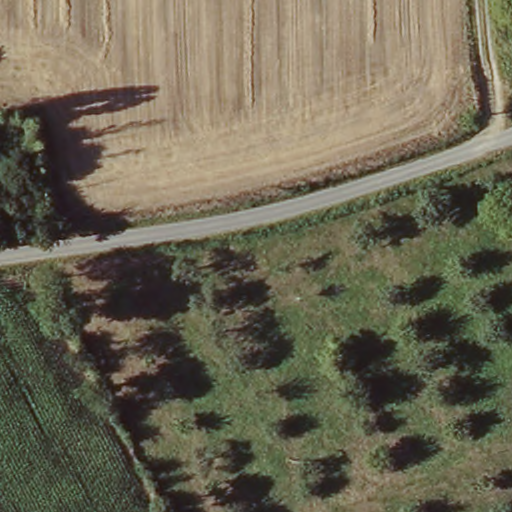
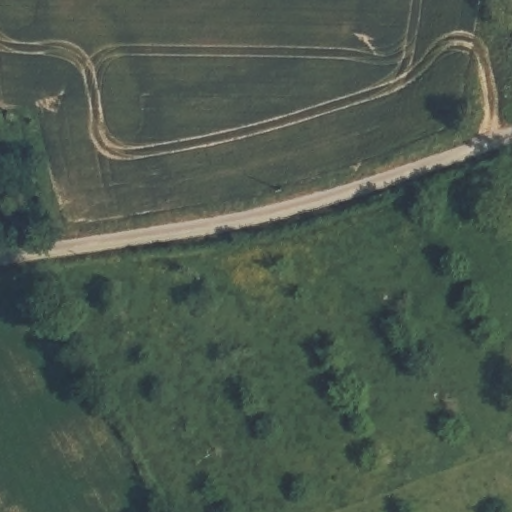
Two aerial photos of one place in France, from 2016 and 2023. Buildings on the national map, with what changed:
[]

